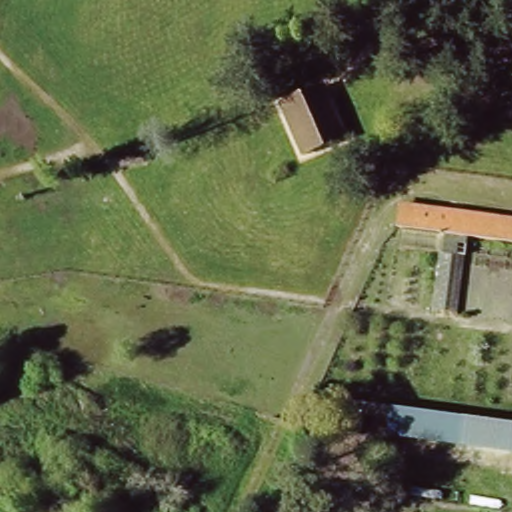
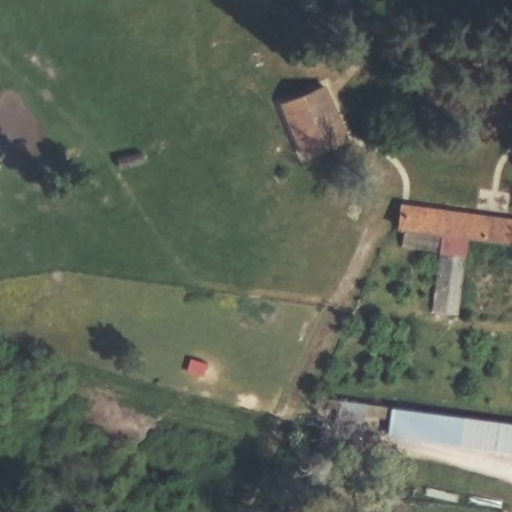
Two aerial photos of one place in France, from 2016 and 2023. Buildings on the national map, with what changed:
unchanged [(316,86),(349,136),(313,161),(279,111),(316,86)]
unchanged [(402,202),(512,216),(512,246),(467,240),(466,249),(439,247),(396,241),(402,202)]
unchanged [(466,249),(458,311),(431,307),(439,247),(466,249)]
unchanged [(361,415),(358,435),(313,429),(320,394),(389,403),(387,418),(361,415)]
unchanged [(512,420),(512,453),(385,435),(387,418),(389,403),(512,420)]

